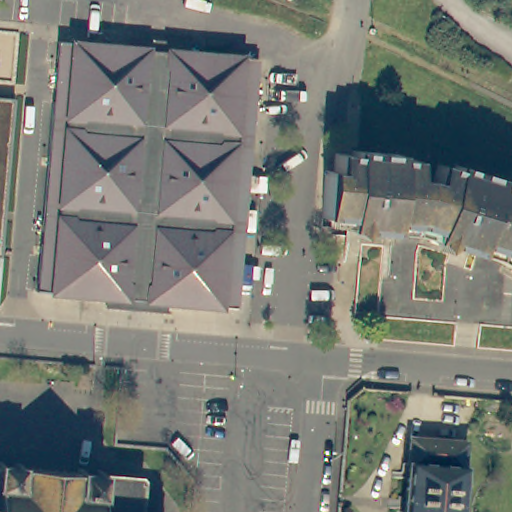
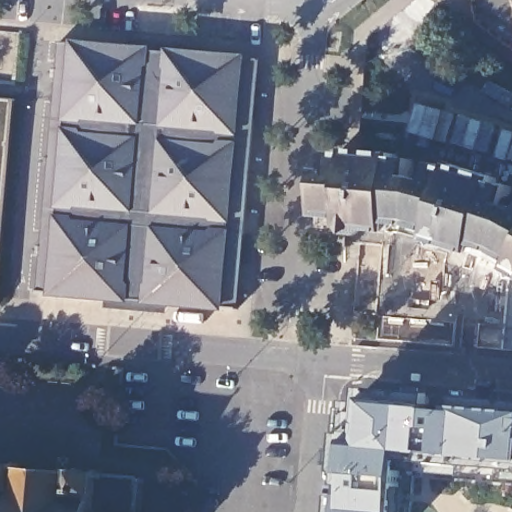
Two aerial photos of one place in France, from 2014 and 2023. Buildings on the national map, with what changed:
unchanged [(126,52),(127,45),(180,49),(180,56),(255,64),(238,267),(168,261),(180,93),(52,81),(55,44),(126,52)]
unchanged [(234,312),(162,307),(161,315),(108,310),(109,303),(35,298),(52,81),(180,93),(168,261),(238,267),(234,312)]
unchanged [(10,102),(5,162),(0,232),(0,101),(10,102)]
unchanged [(355,339),(358,248),(381,250),(378,315),(454,322),(453,344),(355,339)]
unchanged [(474,325),(512,328),(512,349),(472,345),(474,325)]
new [(356,496),(356,475),(351,474),(350,472),(342,472),(346,434),(352,434),(353,413),(375,415),(377,402),(370,390),(512,403),(512,512),(338,512),(339,497),(356,496)]
demolished [(467,447),(465,475),(466,475),(463,512),(406,512),(412,442),(467,447)]
unchanged [(4,457),(4,461),(18,462),(19,458),(24,459),(24,463),(80,468),(80,464),(85,464),(85,468),(100,470),(100,465),(105,465),(105,471),(141,473),(145,475),(143,512),(0,512),(0,457),(4,457)]
unchanged [(164,509),(164,512),(160,512),(160,509),(164,509)]

